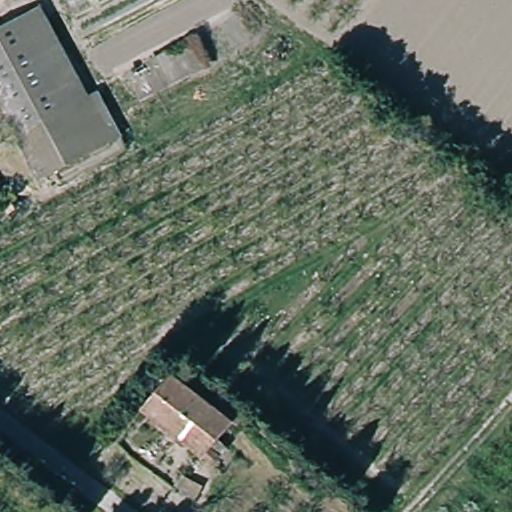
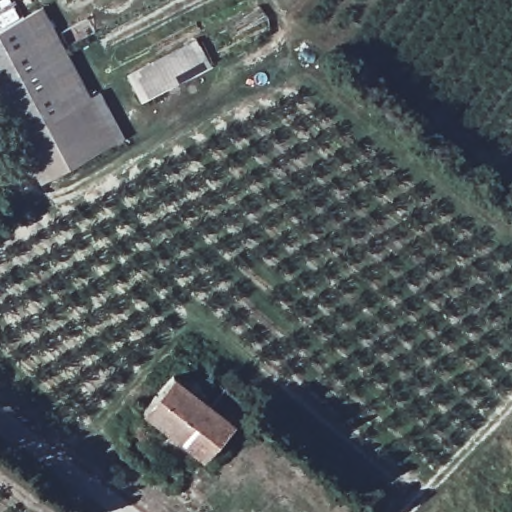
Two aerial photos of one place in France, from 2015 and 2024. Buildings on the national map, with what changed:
unchanged [(40,10),(60,45),(87,94),(67,105),(15,133),(0,105),(0,29),(20,19),(40,10)]
unchanged [(145,101),(132,77),(200,42),(213,65),(145,101)]
unchanged [(95,90),(120,137),(40,178),(15,133),(67,105),(87,94),(95,90)]
unchanged [(207,400),(220,387),(247,405),(207,445),(219,455),(207,469),(135,412),(170,370),(207,400)]

